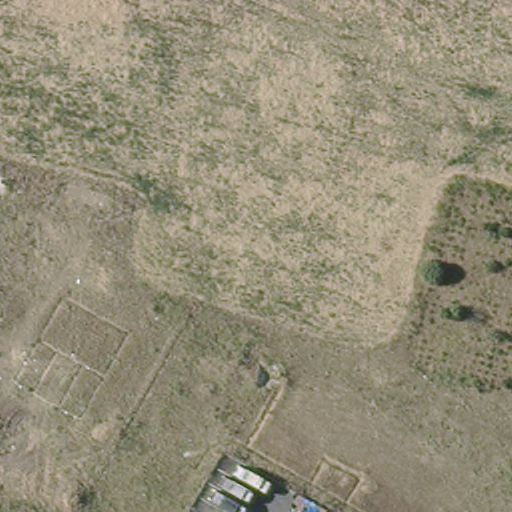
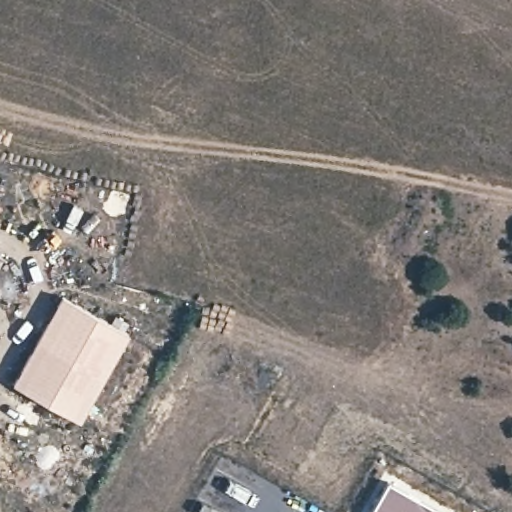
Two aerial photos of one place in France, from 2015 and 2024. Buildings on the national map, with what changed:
new [(125,343),(79,425),(15,390),(60,308),(125,343)]
new [(389,487),(433,512),(374,512),(389,487)]

